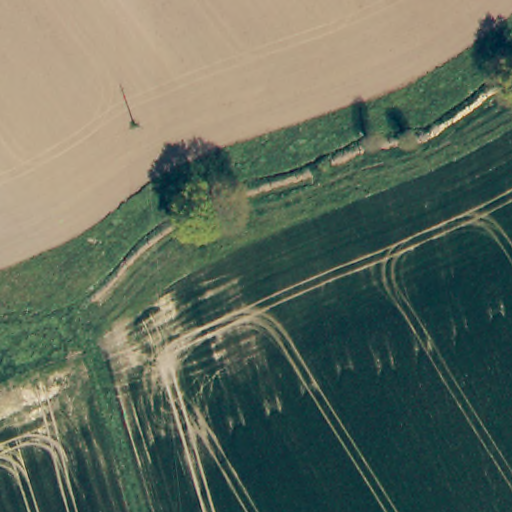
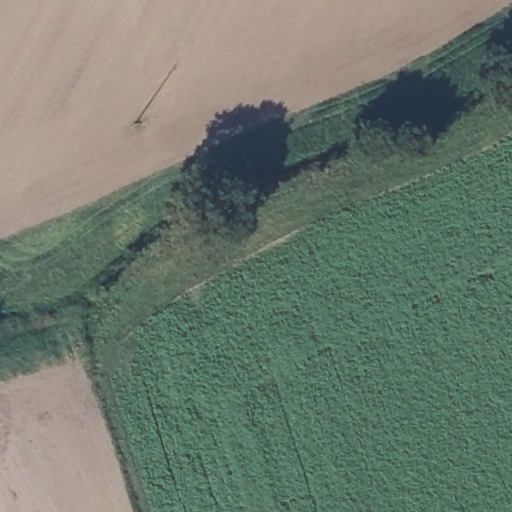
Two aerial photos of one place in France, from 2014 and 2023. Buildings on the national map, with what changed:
[]

